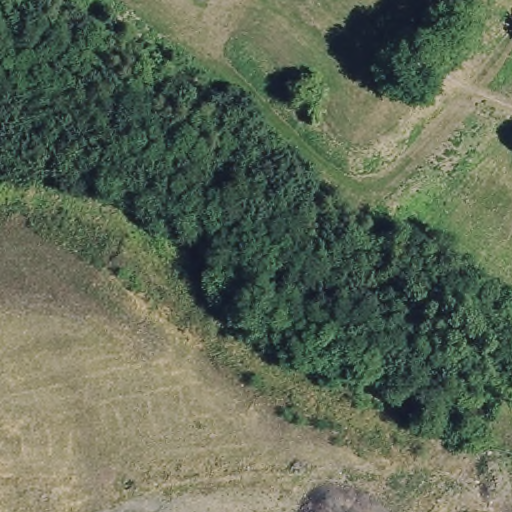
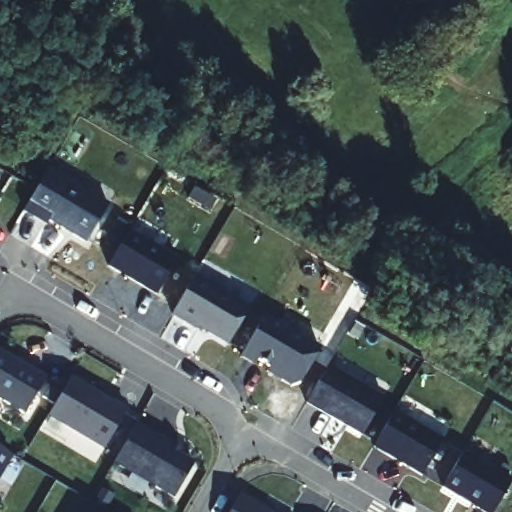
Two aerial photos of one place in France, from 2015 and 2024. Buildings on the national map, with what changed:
new [(89,241),(50,220),(47,225),(26,211),(49,165),(112,202),(89,241)]
new [(0,200),(0,188),(6,191),(0,200)]
new [(128,229),(177,259),(156,295),(107,265),(128,229)]
new [(249,308),(230,343),(174,311),(195,276),(249,308)]
new [(321,345),(301,382),(290,384),(240,355),(265,314),(321,345)]
new [(24,413),(0,399),(0,349),(45,376),(24,413)]
new [(327,365),(384,398),(362,436),(306,401),(327,365)]
new [(69,377),(127,411),(104,448),(49,413),(69,377)]
new [(393,412),(442,441),(422,476),(373,446),(393,412)]
new [(136,425),(196,460),(174,497),(114,461),(136,425)]
new [(0,474),(0,448),(12,455),(0,474)]
new [(511,482),(493,512),(484,512),(442,488),(462,452),(511,482)]
new [(268,512),(230,512),(240,496),(268,512)]
new [(108,512),(99,512),(102,509),(108,512)]

